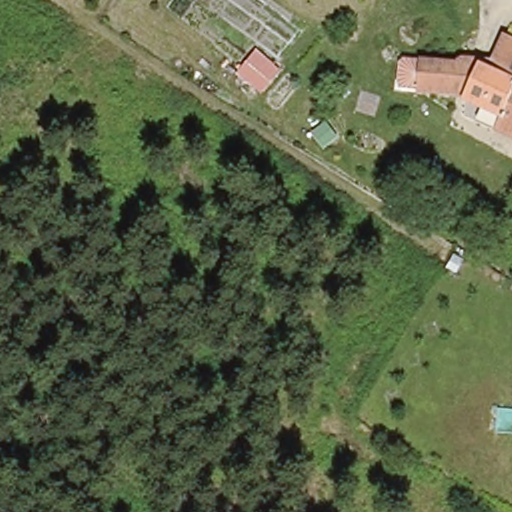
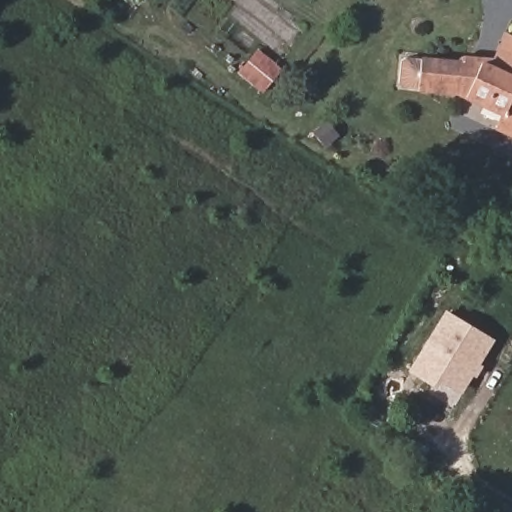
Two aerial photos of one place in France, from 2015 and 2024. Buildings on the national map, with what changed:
unchanged [(501,115),(460,97),(420,94),(405,92),(400,88),(403,58),(408,56),(422,58),(461,64),(462,55),(495,59),(507,33),(512,35),(512,138),(495,131),(501,115)]
unchanged [(257,47),(281,67),(261,92),(237,74),(257,47)]
new [(446,310),(497,341),(460,403),(408,371),(446,310)]

